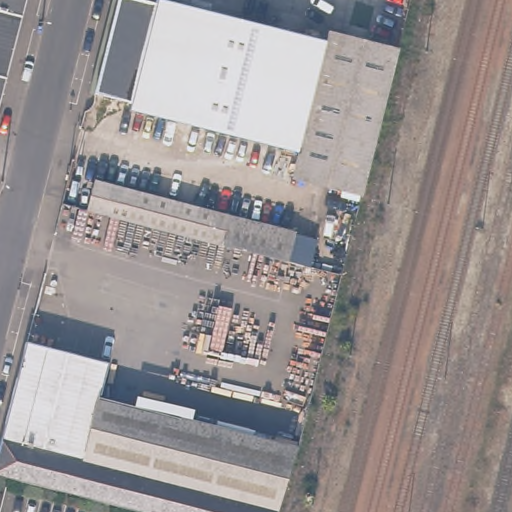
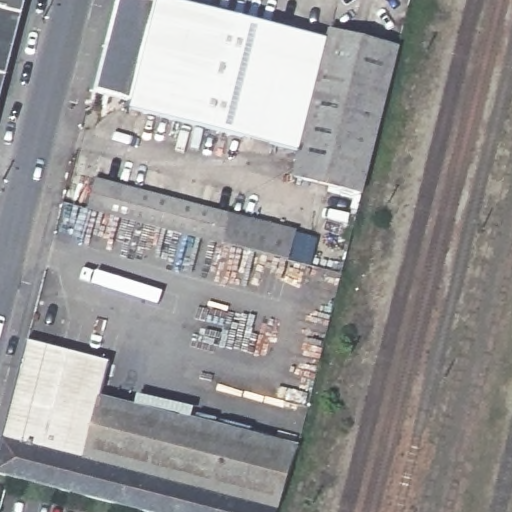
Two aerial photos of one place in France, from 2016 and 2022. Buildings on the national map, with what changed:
unchanged [(0,0),(32,0),(28,17),(0,10),(0,0)]
unchanged [(100,93),(124,0),(158,0),(162,1),(153,41),(139,102),(100,93)]
unchanged [(371,184),(369,193),(300,176),(306,153),(136,110),(139,102),(153,41),(162,1),(163,0),(177,0),(335,40),(337,30),(405,47),(371,184)]
unchanged [(0,128),(0,10),(28,17),(0,128)]
unchanged [(90,206),(97,177),(283,225),(296,229),(289,258),(90,206)]
unchanged [(273,506),(271,512),(168,512),(0,469),(0,424),(24,332),(108,355),(99,390),(295,442),(287,468),(273,506)]

